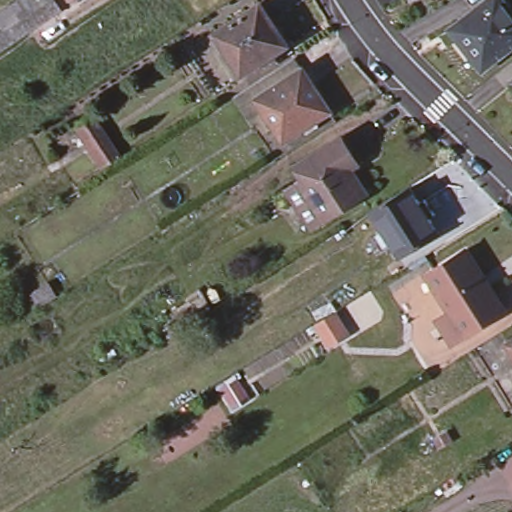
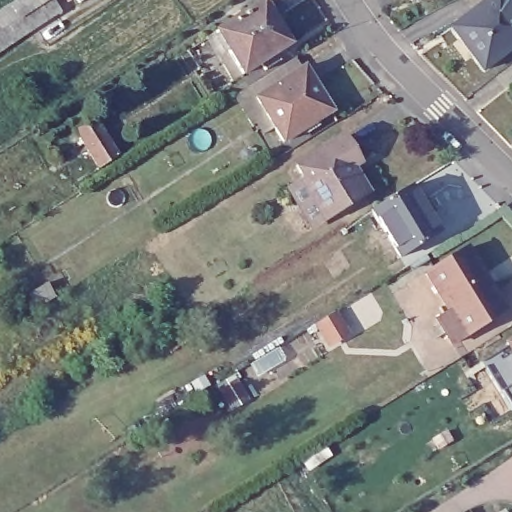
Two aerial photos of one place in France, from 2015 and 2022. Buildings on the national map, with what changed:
unchanged [(16,13),(37,0),(44,0),(50,10),(0,45),(0,23),(16,13)]
unchanged [(7,0),(37,0),(16,13),(7,0)]
unchanged [(411,0),(421,0),(413,3),(411,0)]
unchanged [(512,47),(481,71),(447,31),(486,0),(499,0),(512,15),(512,47)]
unchanged [(241,75),(231,60),(216,36),(213,33),(256,4),(259,8),(275,32),(284,46),(241,75)]
unchanged [(266,111),(258,99),(258,98),(251,88),(269,76),(296,58),(303,68),(304,67),(333,110),(286,141),(266,111)]
unchanged [(96,122),(112,146),(121,159),(101,172),(93,158),(78,135),(74,130),(93,118),(96,122)]
unchanged [(303,182),(302,181),(294,169),(339,141),(347,153),(354,166),(349,171),(357,184),(364,195),(359,198),(321,222),(314,211),(309,203),(298,185),(303,182)]
unchanged [(424,203),(434,219),(428,223),(437,238),(397,262),(368,214),(408,190),(418,207),(424,203)]
unchanged [(455,338),(449,327),(440,313),(452,306),(447,297),(434,275),(429,268),(467,244),(472,251),(485,273),(499,296),(506,306),(455,338)]
unchanged [(512,336),(512,356),(503,342),(512,336)]

